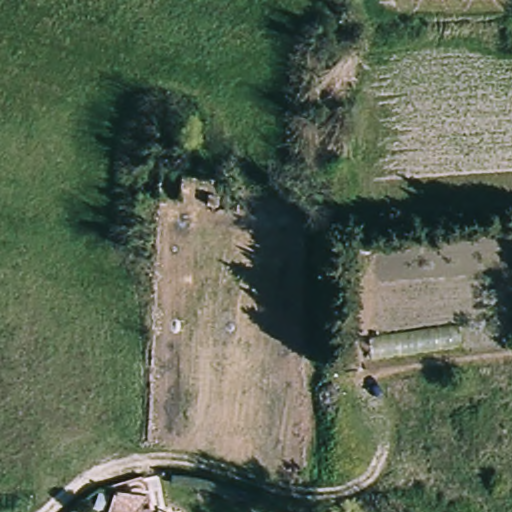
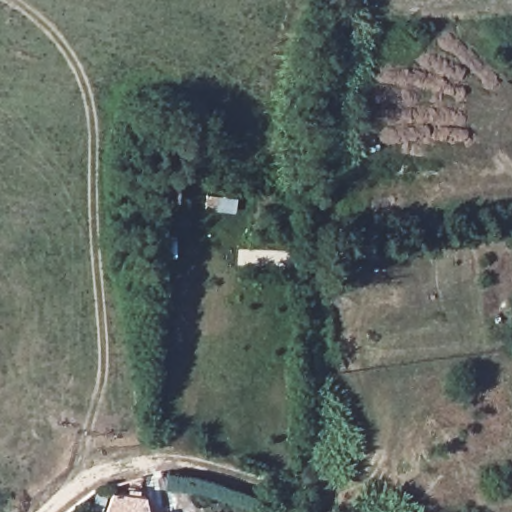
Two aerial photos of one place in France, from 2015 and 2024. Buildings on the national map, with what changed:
unchanged [(103,507),(104,504),(109,491),(140,492),(142,512),(129,512),(129,510),(103,507)]

